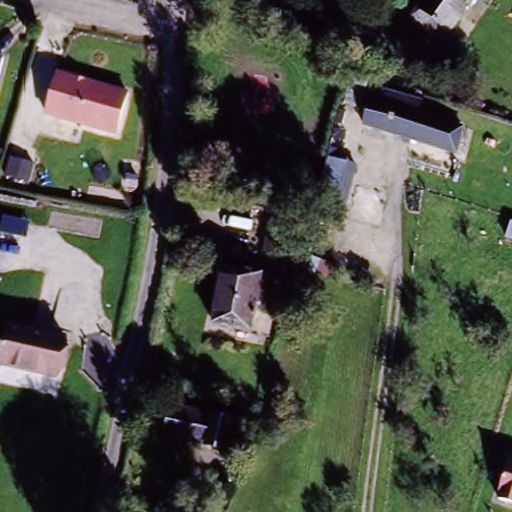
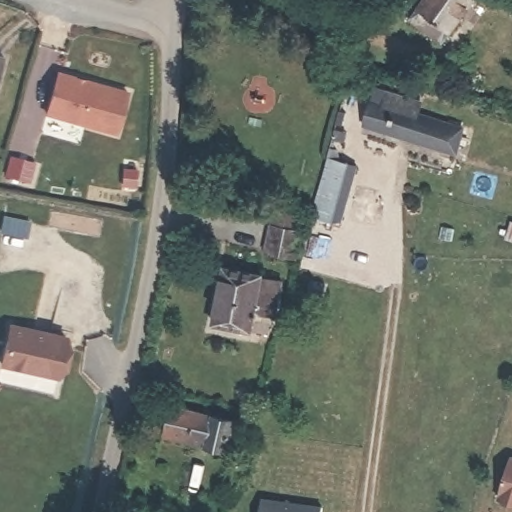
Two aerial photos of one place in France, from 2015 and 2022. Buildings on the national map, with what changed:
unchanged [(410,17),(423,0),(470,0),(440,41),(430,54),(400,31),(410,17)]
unchanged [(3,60),(0,73),(0,58),(3,60)]
unchanged [(128,91),(117,136),(45,118),(55,72),(128,91)]
unchanged [(373,96),(464,125),(455,152),(365,122),(373,96)]
unchanged [(325,167),(342,173),(328,214),(311,209),(325,167)]
unchanged [(288,260),(265,254),(272,229),(295,235),(288,260)]
unchanged [(251,331),(215,322),(227,268),(265,277),(281,282),(270,319),(265,334),(251,331)]
unchanged [(5,327),(62,338),(53,378),(0,367),(0,352),(5,327)]
unchanged [(235,441),(225,438),(222,447),(187,438),(162,432),(169,405),(240,422),(235,441)]
unchanged [(512,506),(499,502),(510,456),(512,456),(512,506)]
new [(324,505),(323,512),(261,512),(262,499),(324,505)]

